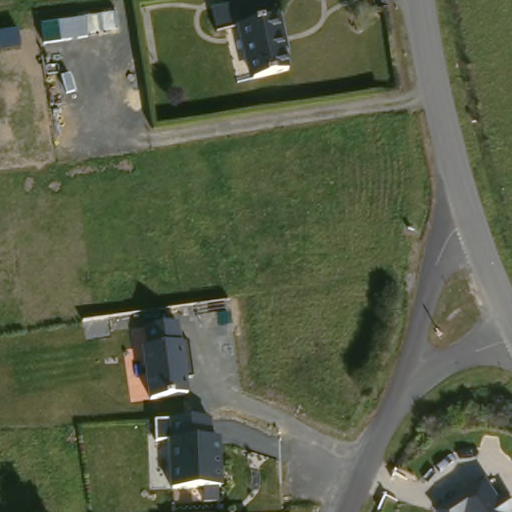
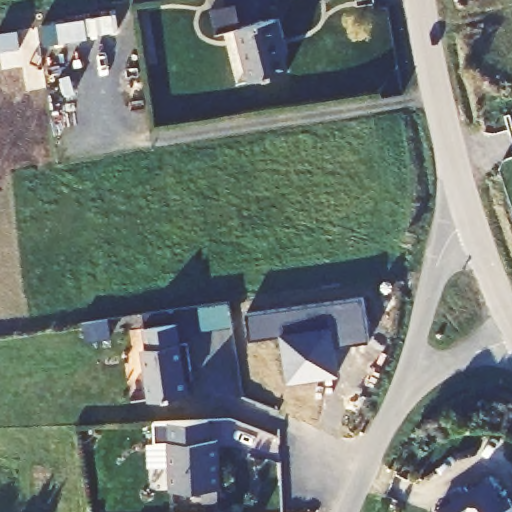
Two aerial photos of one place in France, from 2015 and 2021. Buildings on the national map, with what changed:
unchanged [(276,18),(286,70),(246,78),(236,25),(276,18)]
new [(285,358),(282,337),(250,342),(246,315),(363,298),(370,342),(334,348),(338,374),(307,379),(289,381),(285,358)]
unchanged [(146,347),(143,328),(177,322),(181,342),(186,341),(192,378),(186,379),(188,393),(148,399),(140,348),(146,347)]
unchanged [(209,417),(210,435),(221,435),(223,484),(169,486),(167,438),(154,439),(154,420),(209,417)]
unchanged [(508,486),(512,493),(512,512),(441,512),(438,507),(487,475),(498,491),(508,486)]

